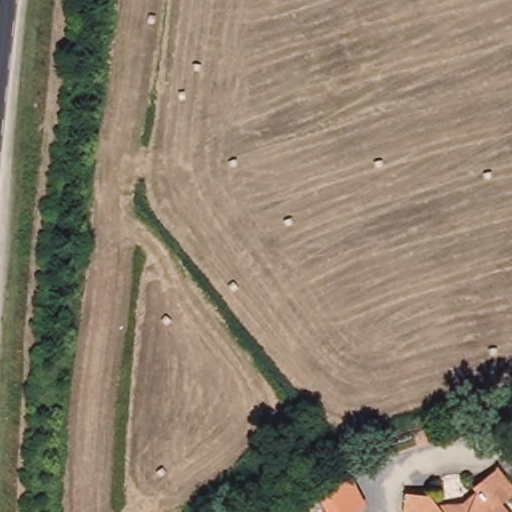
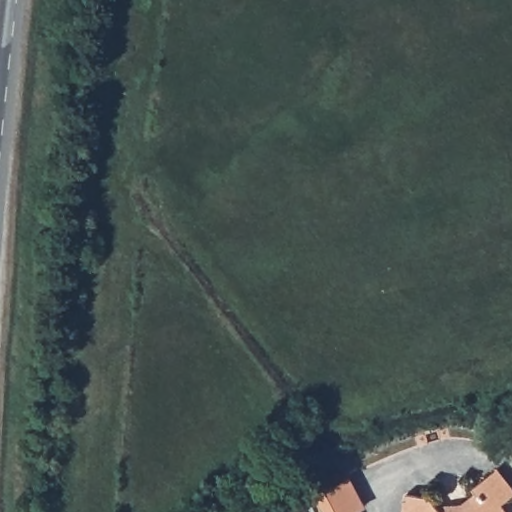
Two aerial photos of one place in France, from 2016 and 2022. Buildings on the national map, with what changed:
unchanged [(474,498),(471,492),(495,474),(512,496),(512,499),(499,509),(500,512),(462,512),(463,506),(474,498)]
unchanged [(353,476),(369,507),(361,512),(327,512),(318,494),(353,476)]
unchanged [(427,501),(434,510),(435,512),(400,512),(401,497),(427,501)]
unchanged [(448,512),(446,512),(448,511),(448,512)]

